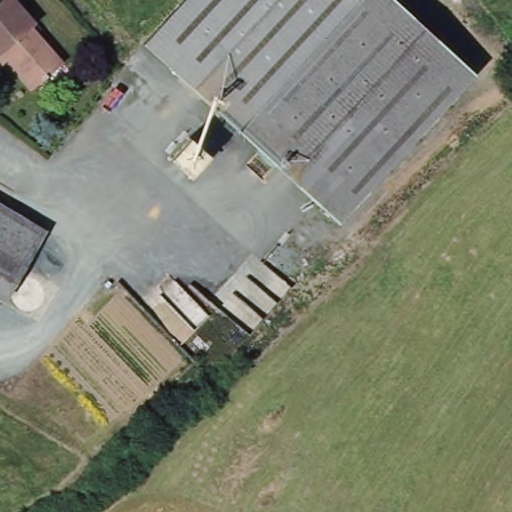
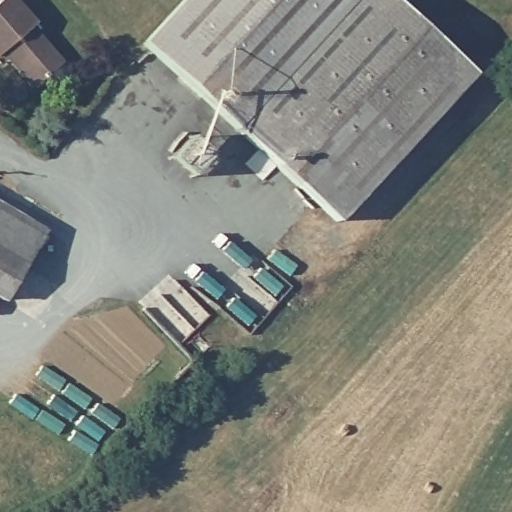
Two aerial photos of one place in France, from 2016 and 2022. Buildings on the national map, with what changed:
unchanged [(4,0),(16,0),(36,25),(31,29),(61,64),(32,90),(1,54),(0,55),(0,3),(4,0)]
unchanged [(184,0),(400,0),(478,74),(351,206),(335,224),(224,119),(199,96),(143,43),(184,0)]
unchanged [(190,134),(211,154),(190,175),(170,154),(190,134)]
unchanged [(41,283),(48,292),(47,302),(42,311),(36,314),(28,314),(21,310),(16,304),(10,296),(5,304),(0,301),(0,205),(46,234),(19,280),(31,279),(41,283)]
unchanged [(177,281),(210,317),(175,348),(170,343),(143,312),(177,281)]

